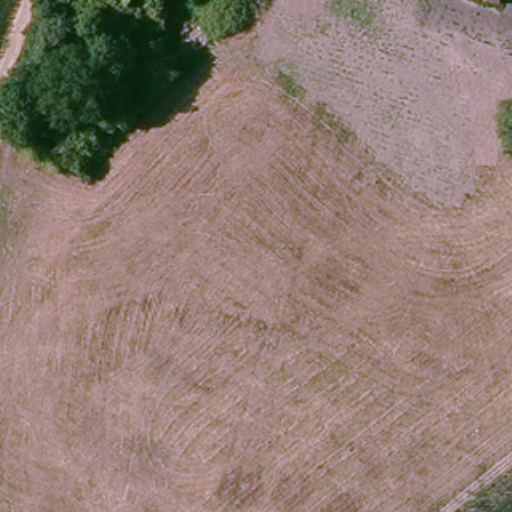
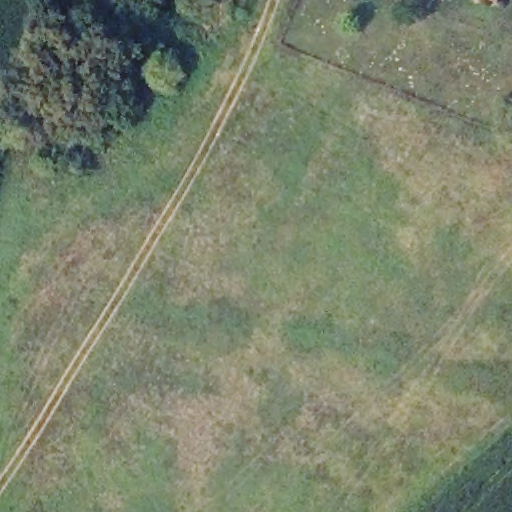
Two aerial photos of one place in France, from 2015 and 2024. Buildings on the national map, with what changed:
unchanged [(493,6),(483,0),(497,0),(493,6)]

